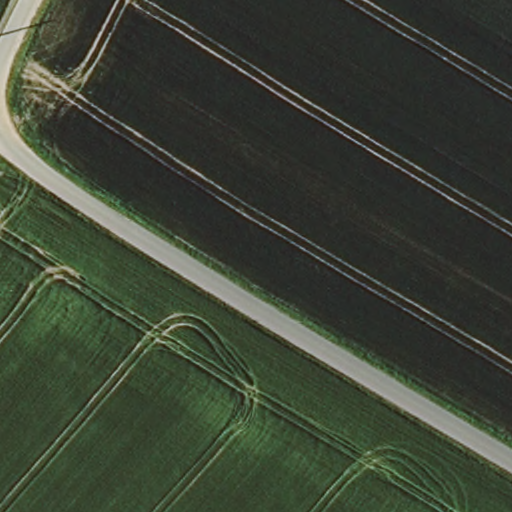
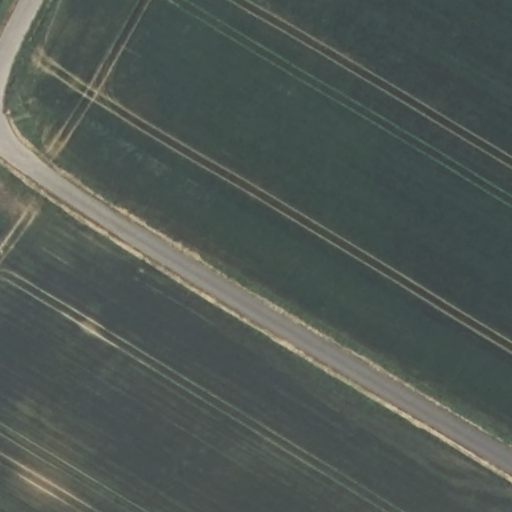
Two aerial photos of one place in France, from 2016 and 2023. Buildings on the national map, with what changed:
[]

